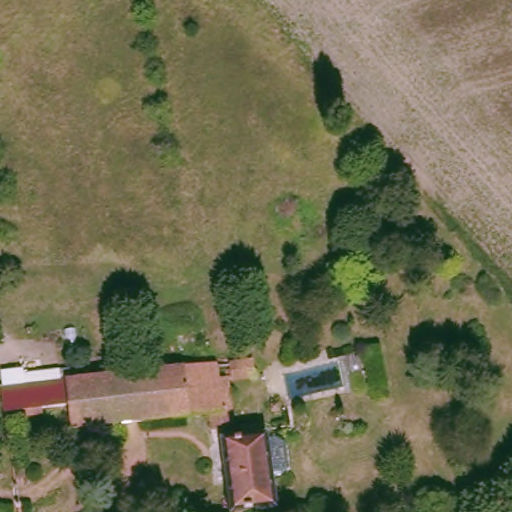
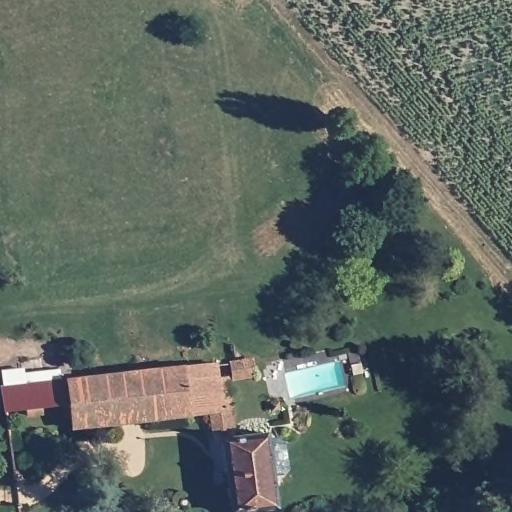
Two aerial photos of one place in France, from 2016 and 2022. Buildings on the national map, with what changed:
unchanged [(193,435),(191,418),(79,429),(76,408),(13,414),(10,388),(220,364),(226,414),(210,416),(213,431),(193,435)]
unchanged [(225,439),(270,435),(272,472),(229,477),(225,439)]
unchanged [(272,472),(277,508),(246,511),(247,512),(234,512),(229,477),(272,472)]

